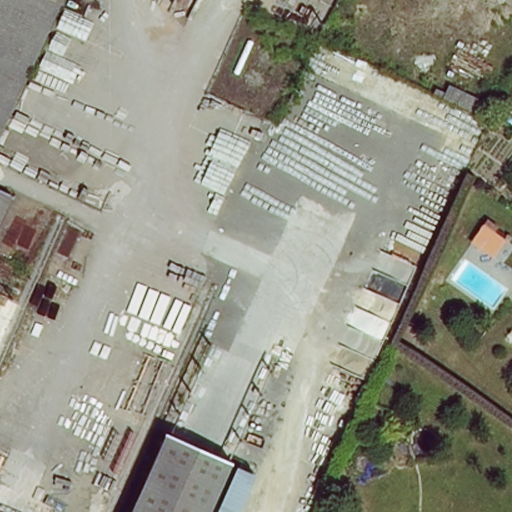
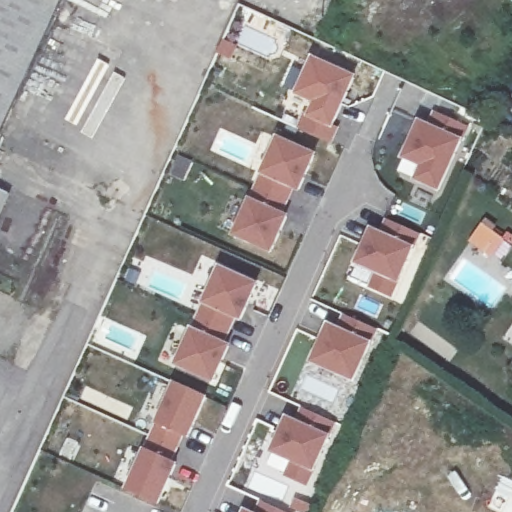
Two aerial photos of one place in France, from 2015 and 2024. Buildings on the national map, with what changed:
unchanged [(0,127),(0,0),(62,0),(0,127)]
new [(359,77),(337,127),(342,130),(335,145),(300,130),(307,115),(310,116),(315,104),(297,96),(314,57),(359,77)]
new [(430,124),(435,112),(472,130),(466,140),(442,194),(415,182),(423,167),(402,159),(420,119),(430,124)]
new [(319,156),(302,193),(297,191),(286,214),(292,216),(274,255),(234,237),(280,136),(319,156)]
unchanged [(0,223),(0,197),(11,202),(0,223)]
new [(382,231),(387,219),(423,236),(418,247),(402,284),(397,298),(370,289),(378,274),(355,265),(372,229),(382,231)]
new [(260,285),(244,322),(238,320),(229,344),(233,346),(214,383),(175,367),(220,267),(260,285)]
new [(340,329),(344,313),(380,330),(375,344),(356,383),(312,363),(329,324),(340,329)]
new [(209,398),(191,440),(185,437),(174,462),(180,465),(161,508),(127,492),(176,382),(209,398)]
new [(298,421),(304,408),(339,425),(332,437),(316,473),(310,488),(285,479),(292,463),(270,455),(288,417),(298,421)]
demolished [(126,512),(162,431),(233,462),(210,512),(126,512)]
new [(256,512),(262,502),(283,512),(256,512)]
new [(253,512),(244,512),(246,508),(253,512)]

